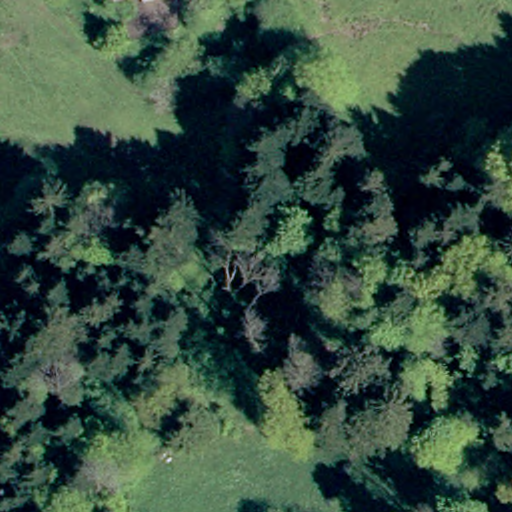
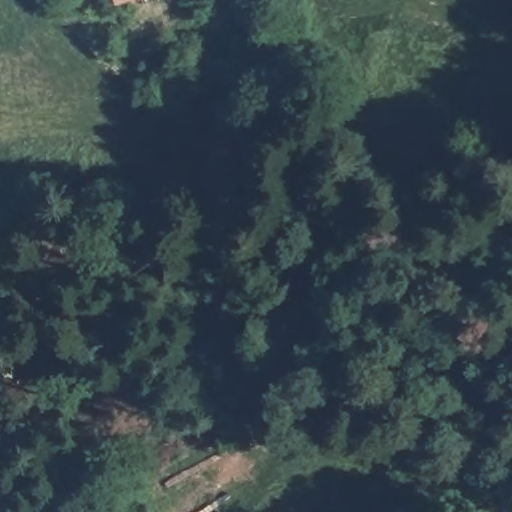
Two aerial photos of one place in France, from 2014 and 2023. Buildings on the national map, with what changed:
unchanged [(114,1),(114,0),(122,0),(114,1)]

